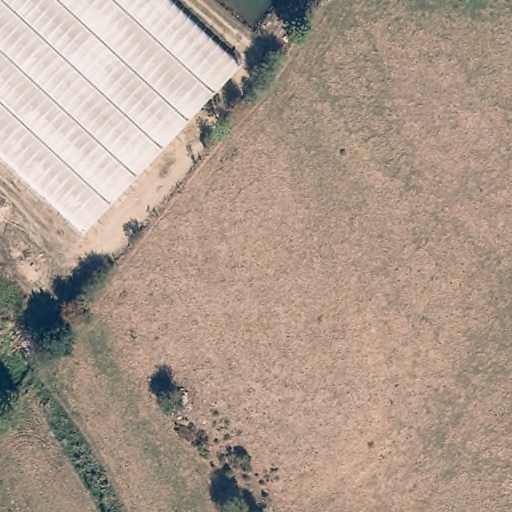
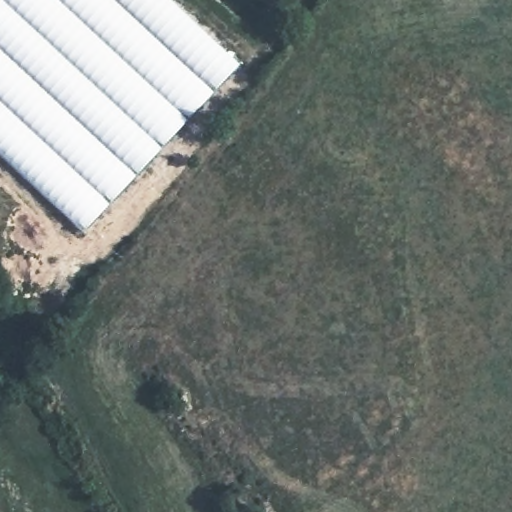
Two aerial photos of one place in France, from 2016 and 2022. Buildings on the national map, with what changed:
unchanged [(0,164),(0,0),(161,0),(240,73),(83,241),(0,164)]

